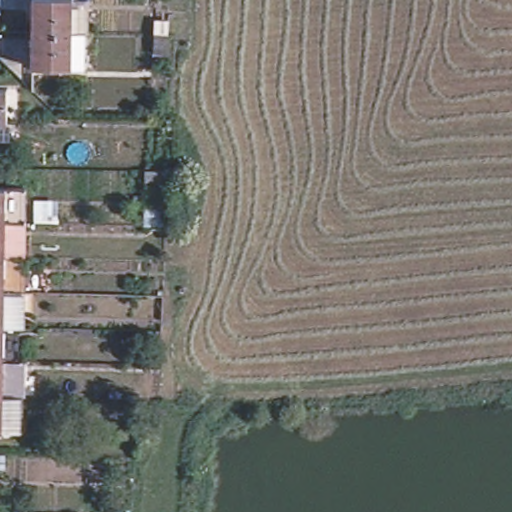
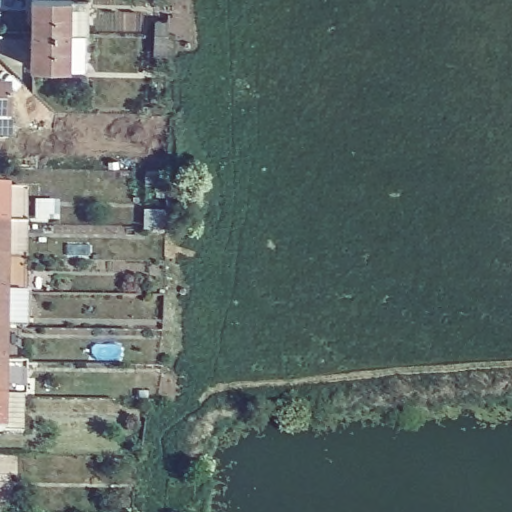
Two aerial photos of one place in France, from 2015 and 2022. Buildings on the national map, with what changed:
unchanged [(34,7),(34,0),(89,0),(88,43),(84,43),(83,77),(70,76),(70,78),(33,77),(33,42),(34,7)]
unchanged [(153,48),(154,34),(154,21),(165,21),(167,21),(167,40),(167,49),(153,48)]
unchanged [(0,138),(0,90),(7,90),(7,124),(7,139),(0,138)]
unchanged [(169,185),(147,184),(147,171),(170,171),(169,185)]
unchanged [(5,190),(25,191),(25,225),(25,259),(25,294),(5,294),(5,329),(0,328),(0,189),(5,190)]
unchanged [(5,364),(0,363),(0,328),(5,329),(5,364)]
unchanged [(24,434),(4,434),(0,433),(0,363),(5,364),(4,399),(24,399),(24,434)]

